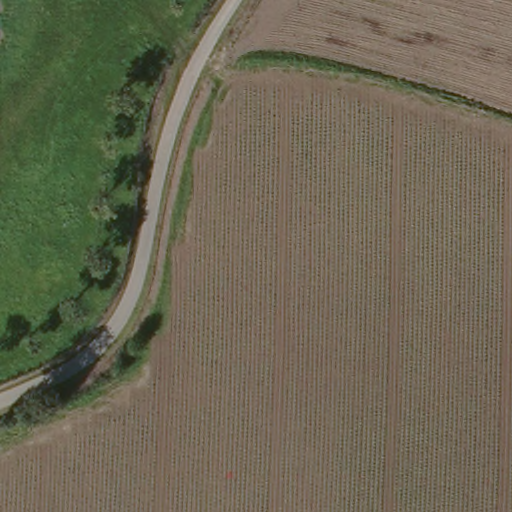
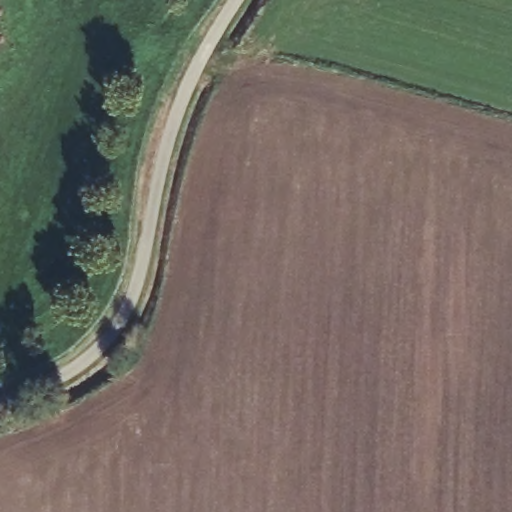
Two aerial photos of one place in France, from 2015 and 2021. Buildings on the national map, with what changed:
[]

